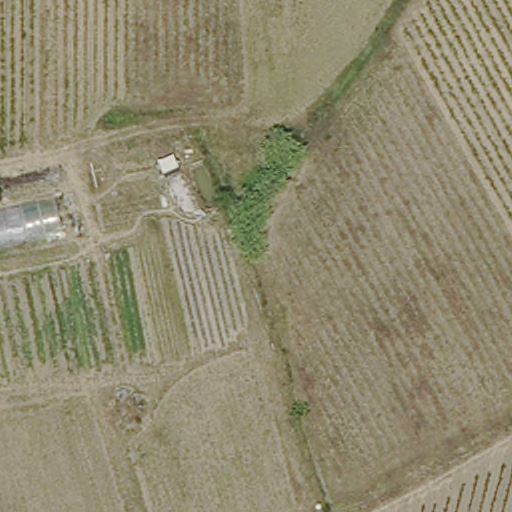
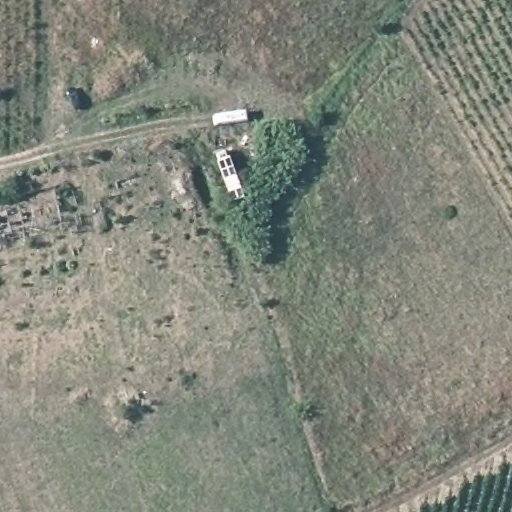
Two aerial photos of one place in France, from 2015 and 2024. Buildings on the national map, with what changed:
unchanged [(0,212),(55,201),(61,229),(0,241),(0,212)]

